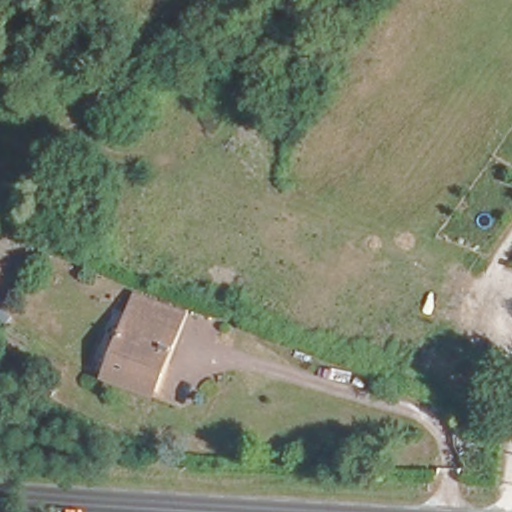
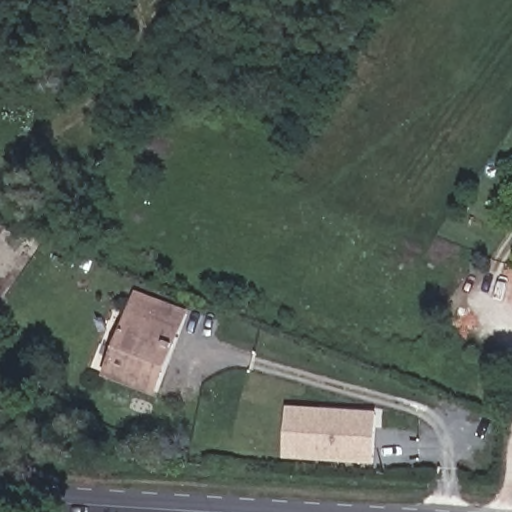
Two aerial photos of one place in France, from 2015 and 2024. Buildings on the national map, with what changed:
unchanged [(161,345),(152,371),(161,374),(154,394),(103,375),(130,293),(182,311),(170,348),(161,345)]
new [(283,459),(287,406),(377,412),(374,465),(283,459)]

